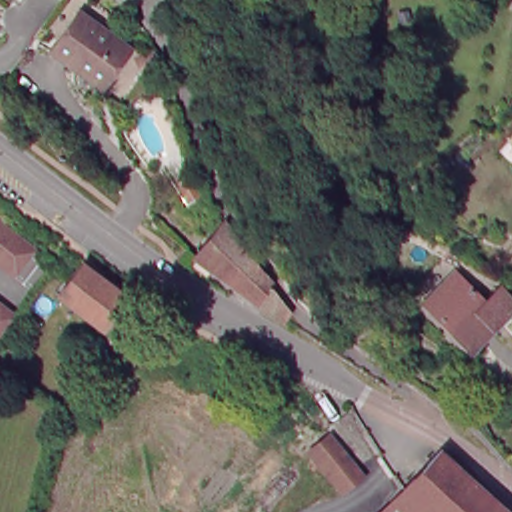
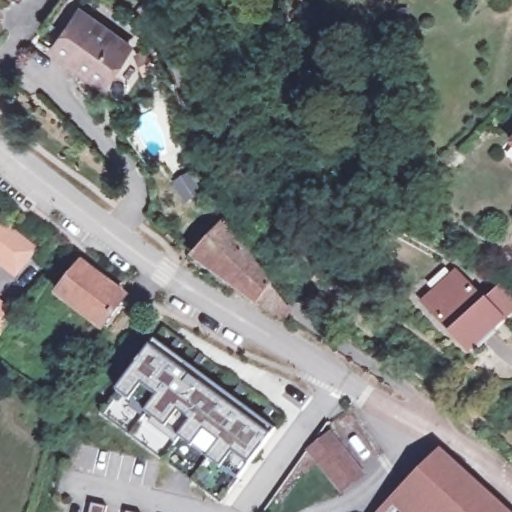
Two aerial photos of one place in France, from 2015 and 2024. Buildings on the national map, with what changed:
unchanged [(103,84),(72,61),(70,62),(50,49),(78,10),(129,47),(103,84)]
unchanged [(19,276),(0,261),(0,219),(39,251),(35,257),(19,276)]
unchanged [(297,327),(296,328),(267,310),(204,263),(233,230),(241,242),(251,257),(262,270),(281,291),(279,294),(302,320),(297,327)]
unchanged [(60,293),(84,264),(129,297),(105,328),(60,293)]
unchanged [(487,302),(503,287),(512,296),(512,313),(473,350),(426,302),(457,272),(487,302)]
unchanged [(0,323),(0,294),(14,306),(0,323)]
new [(117,391),(149,347),(153,342),(274,429),(270,436),(249,465),(238,481),(221,469),(208,460),(192,447),(180,437),(176,442),(149,424),(153,418),(146,412),(129,401),(117,391)]
new [(219,503),(101,414),(117,391),(129,401),(146,412),(153,418),(149,424),(176,442),(180,437),(192,447),(208,460),(221,469),(238,481),(219,503)]
unchanged [(359,467),(339,483),(308,446),(326,430),(359,467)]
unchanged [(406,487),(441,452),(506,512),(429,512),(404,488),(406,487)]
unchanged [(394,499),(404,488),(429,512),(381,512),(394,499)]
new [(93,503),(108,507),(107,512),(90,512),(93,503)]
new [(132,512),(128,512),(128,511),(132,512)]

